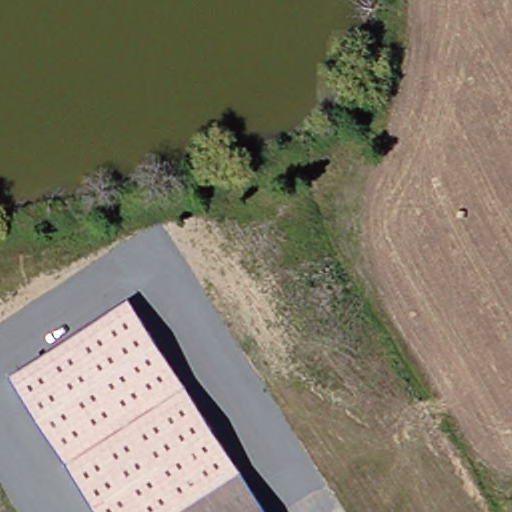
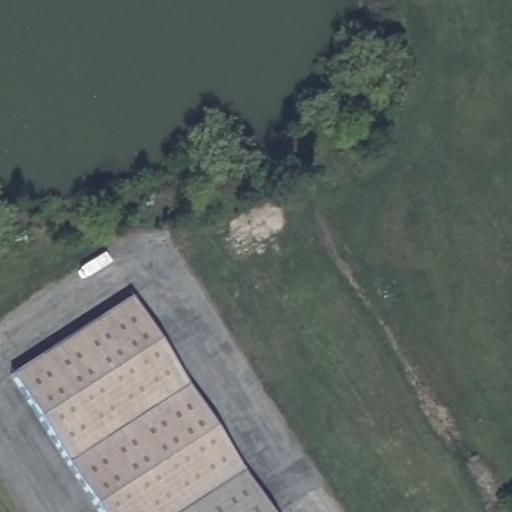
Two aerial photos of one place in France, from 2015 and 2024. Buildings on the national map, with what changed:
unchanged [(177,512),(100,512),(12,376),(131,299),(242,471),(177,512)]
unchanged [(242,471),(269,512),(177,512),(242,471)]

